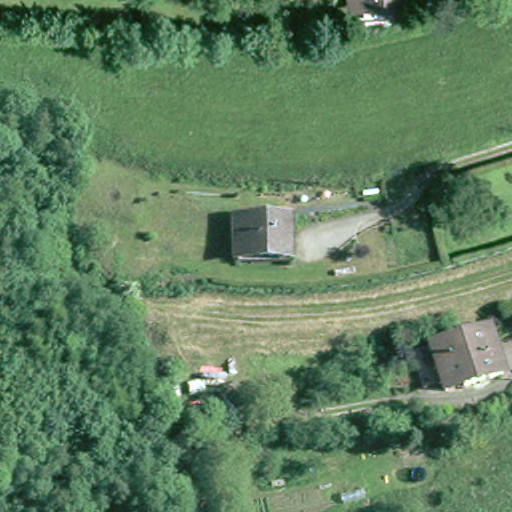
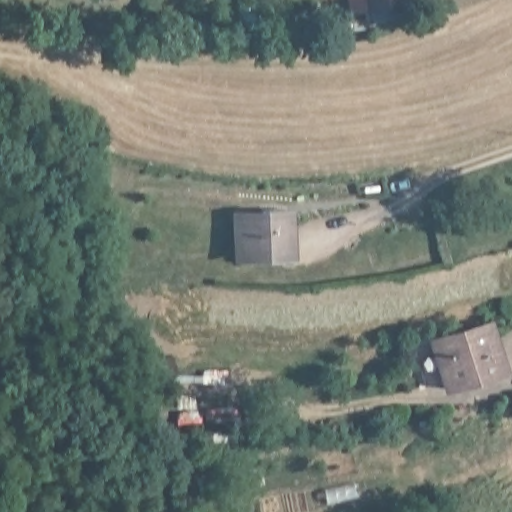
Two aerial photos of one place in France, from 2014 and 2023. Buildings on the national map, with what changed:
unchanged [(405,7),(375,12),(375,10),(362,12),(360,0),(415,0),(416,5),(405,7)]
unchanged [(292,253),(240,256),(238,236),(237,216),(289,212),(291,237),(292,253)]
unchanged [(452,381),(432,387),(420,348),(439,342),(495,325),(509,372),(454,388),(452,381)]

